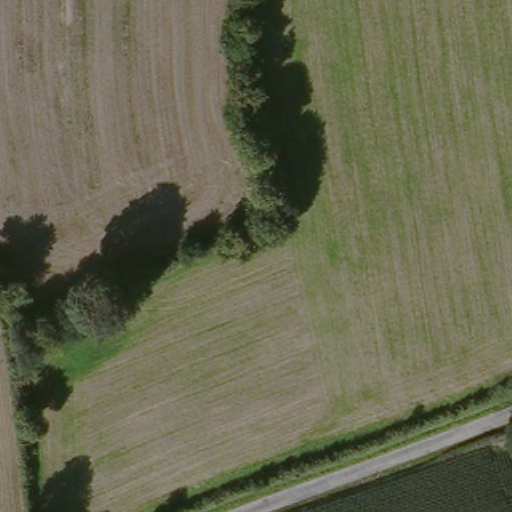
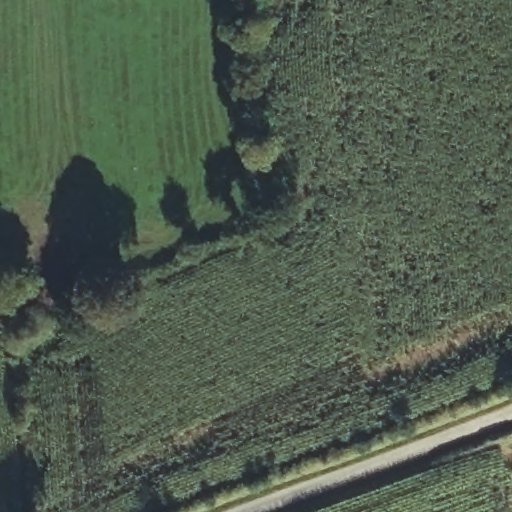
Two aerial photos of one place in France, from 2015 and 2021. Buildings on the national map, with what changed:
[]

